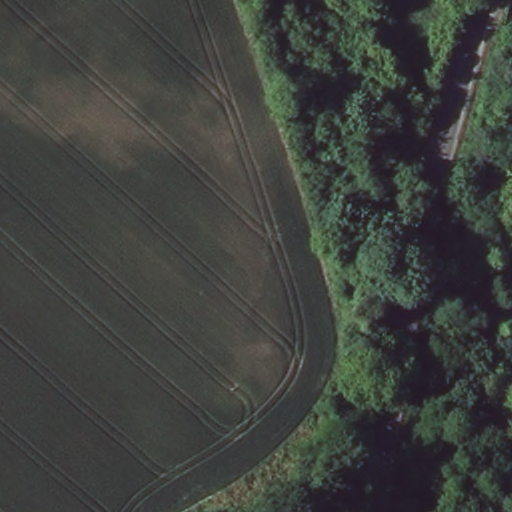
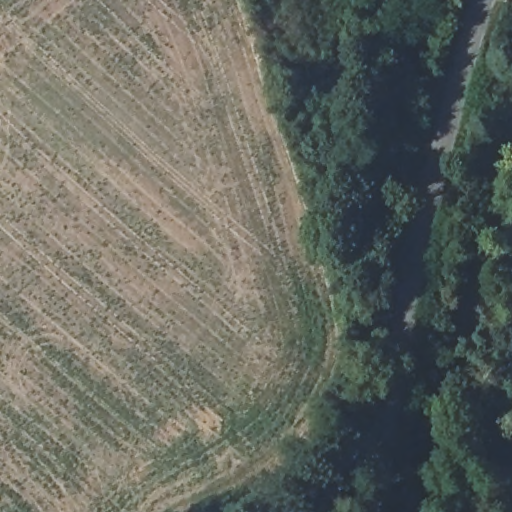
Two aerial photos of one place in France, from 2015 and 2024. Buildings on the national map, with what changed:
[]

